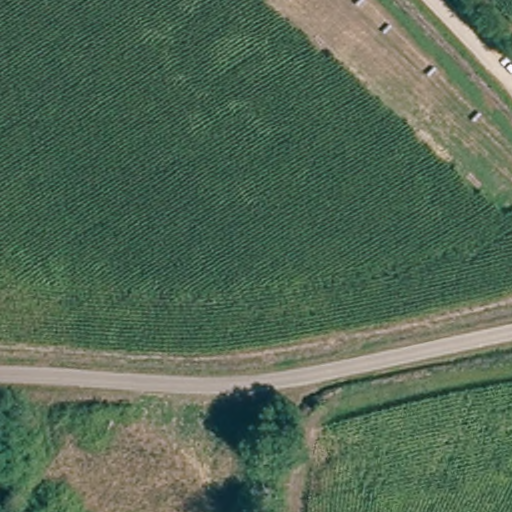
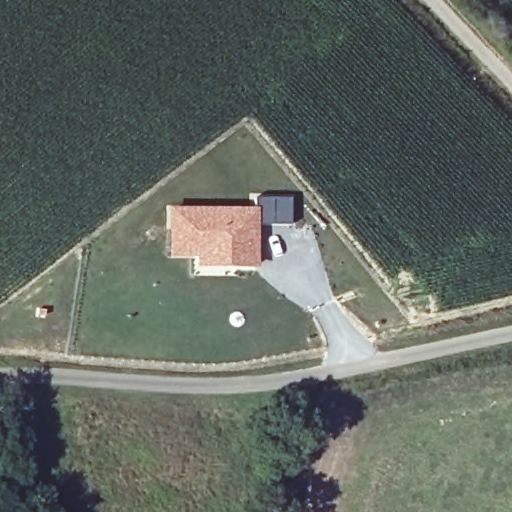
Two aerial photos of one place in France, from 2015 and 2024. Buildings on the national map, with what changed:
new [(258,196),(292,196),(292,224),(258,224),(260,268),(195,268),(194,257),(167,257),(167,204),(258,206),(258,196)]

